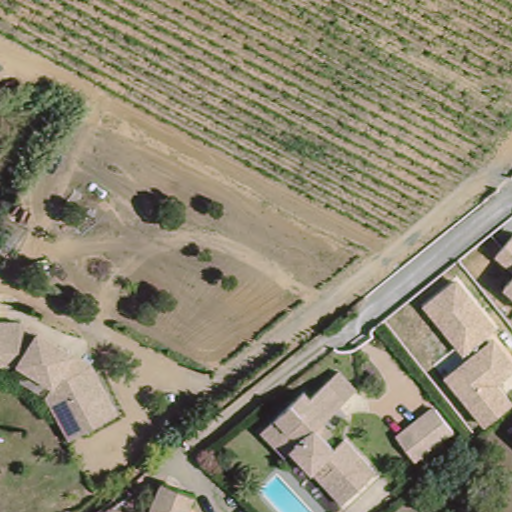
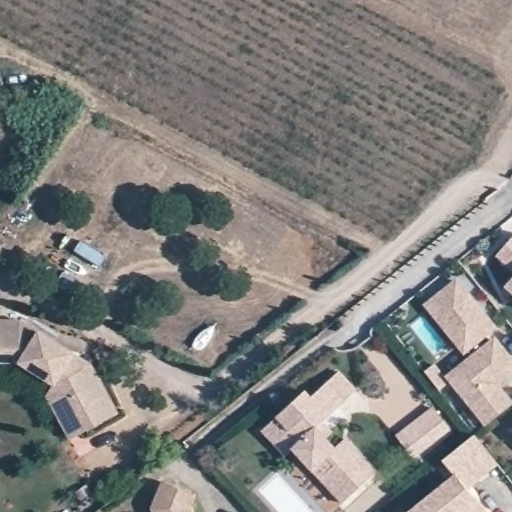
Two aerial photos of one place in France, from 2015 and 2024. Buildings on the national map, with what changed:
unchanged [(512,239),(512,273),(495,258),(512,239)]
unchanged [(497,328),(462,356),(422,304),(457,277),(497,328)]
unchanged [(512,278),(512,297),(502,290),(512,278)]
unchanged [(57,384),(12,367),(0,367),(0,328),(17,328),(90,354),(114,414),(77,430),(70,434),(63,437),(60,430),(48,402),(57,384)]
unchanged [(512,373),(500,383),(512,398),(512,405),(484,428),(444,377),(494,336),(512,357),(512,373)]
unchanged [(304,391),(309,398),(338,371),(357,392),(324,422),(334,433),(325,440),(333,449),(344,439),(375,472),(343,504),(293,450),(285,458),(261,432),(274,419),(304,391)]
unchanged [(453,432),(414,461),(396,437),(432,408),(453,432)]
new [(442,462),(475,437),(499,467),(466,490),(479,504),(486,512),(409,512),(453,476),(442,462)]
unchanged [(163,482),(194,495),(190,509),(191,512),(152,512),(152,510),(163,482)]

